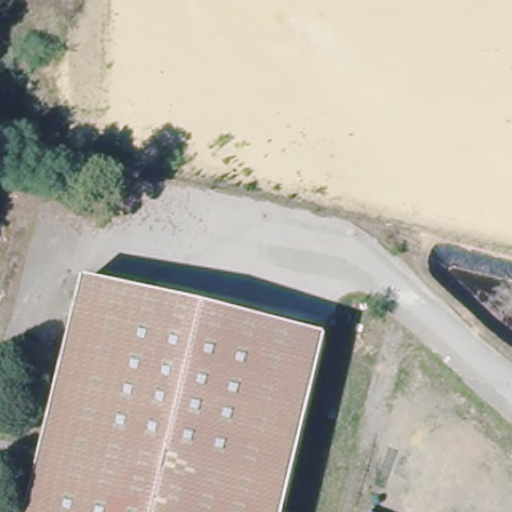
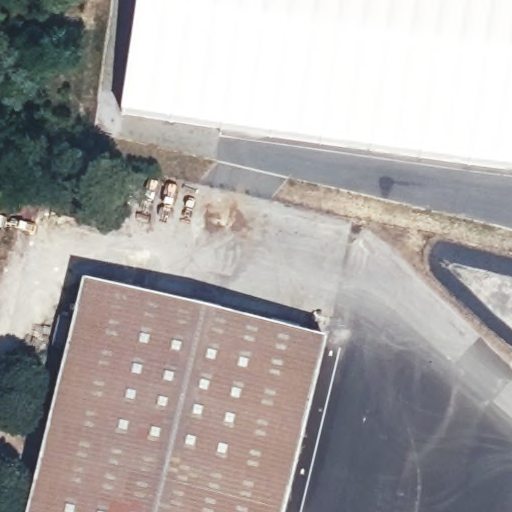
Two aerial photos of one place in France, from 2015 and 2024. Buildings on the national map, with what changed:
new [(512,0),(512,170),(256,131),(119,113),(135,0),(512,0)]
unchanged [(285,512),(29,512),(87,280),(328,339),(285,512)]

